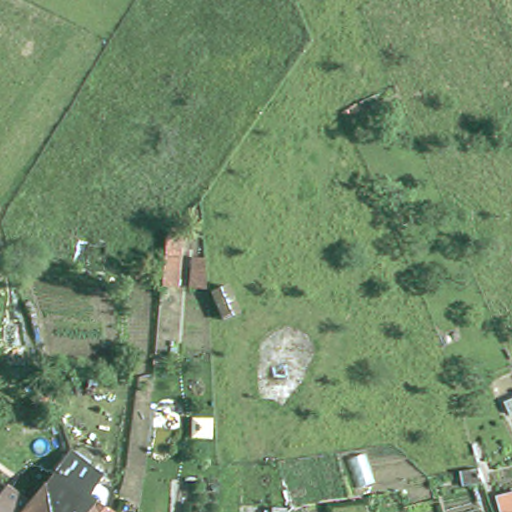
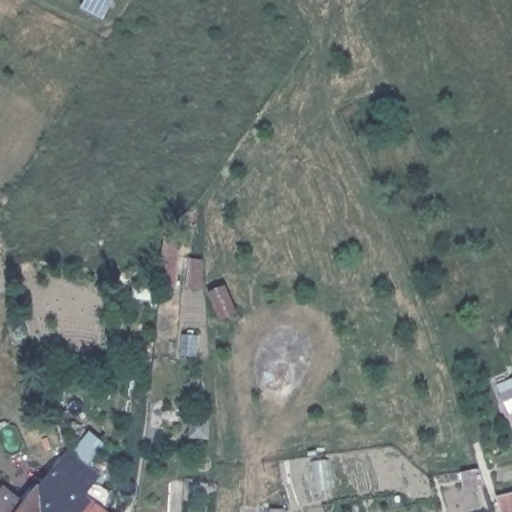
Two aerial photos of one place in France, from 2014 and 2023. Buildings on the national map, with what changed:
unchanged [(5,489),(28,507),(70,453),(103,476),(94,488),(104,496),(96,504),(107,512),(0,512),(0,495),(5,489)]
unchanged [(500,498),(512,495),(512,512),(503,512),(500,498)]

